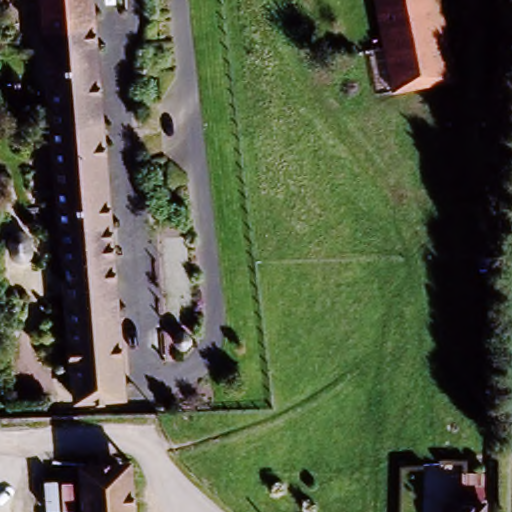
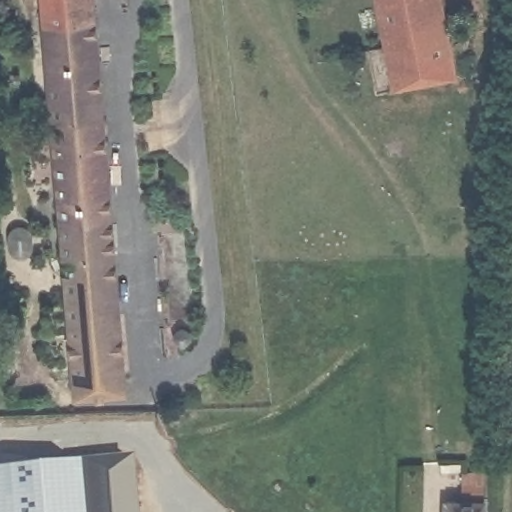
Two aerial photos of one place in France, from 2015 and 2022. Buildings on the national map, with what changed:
unchanged [(73,402),(40,0),(92,0),(126,401),(73,402)]
unchanged [(365,0),(434,0),(448,70),(382,81),(365,0)]
unchanged [(80,461),(133,457),(137,512),(84,512),(80,461)]
new [(0,466),(80,461),(84,512),(0,512),(0,466)]
unchanged [(442,506),(457,507),(457,493),(487,493),(487,507),(487,512),(441,512),(442,506)]

